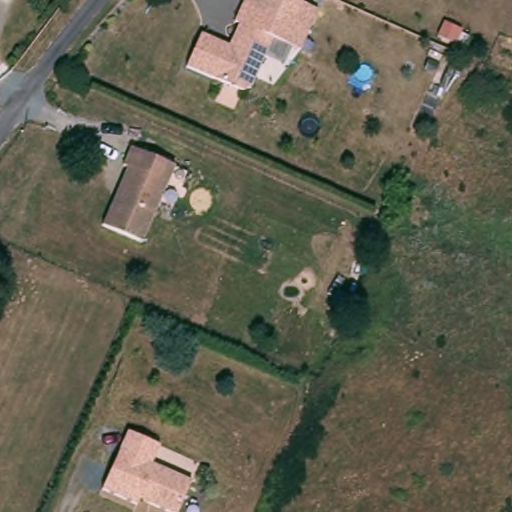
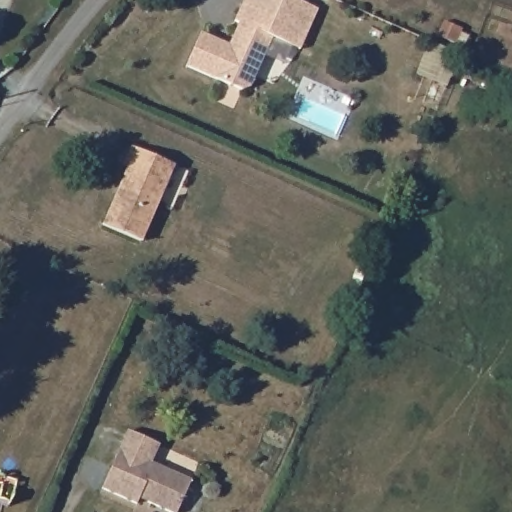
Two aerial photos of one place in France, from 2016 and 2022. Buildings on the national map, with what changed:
unchanged [(318,7),(302,48),(281,38),(289,21),(248,1),(248,0),(301,0),(318,7)]
unchanged [(240,19),(248,1),(289,21),(281,38),(277,36),(259,74),(254,85),(245,88),(227,79),(191,62),(206,29),(234,43),(237,36),(244,21),(240,19)]
unchanged [(126,167),(135,149),(178,169),(144,244),(105,226),(119,196),(123,186),(131,170),(126,167)]
unchanged [(126,493),(92,476),(119,419),(150,435),(142,453),(181,472),(165,505),(137,492),(129,487),(126,493)]

